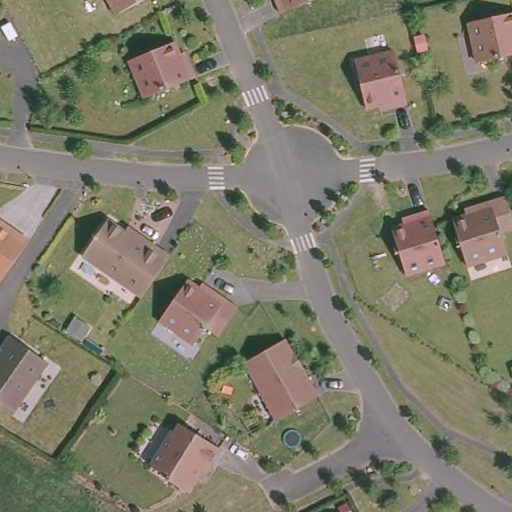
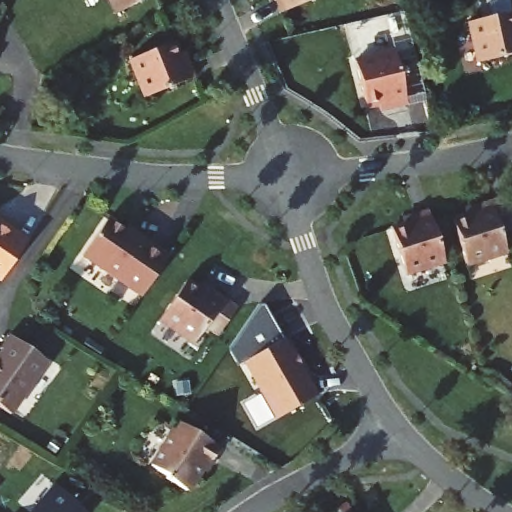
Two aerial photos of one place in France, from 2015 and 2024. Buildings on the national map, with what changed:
unchanged [(117,18),(107,0),(149,0),(117,18)]
unchanged [(277,11),(273,0),(303,0),(277,11)]
unchanged [(512,11),(512,54),(477,63),(466,24),(512,11)]
unchanged [(169,49),(174,71),(181,70),(186,87),(133,100),(123,61),(169,49)]
unchanged [(353,62),(392,52),(406,106),(388,110),(387,103),(364,109),(353,62)]
unchanged [(474,212),(472,206),(503,196),(512,224),(512,229),(499,233),(506,252),(466,265),(451,220),(474,212)]
unchanged [(411,220),(409,214),(426,209),(443,261),(404,273),(389,227),(411,220)]
unchanged [(105,220),(132,238),(135,234),(167,256),(148,284),(142,292),(83,252),(105,220)]
unchanged [(9,229),(25,241),(6,268),(0,277),(0,229),(6,234),(9,229)]
unchanged [(184,285),(205,299),(208,293),(236,312),(216,341),(203,332),(193,348),(158,325),(184,285)]
unchanged [(0,402),(0,349),(3,345),(0,344),(10,331),(48,357),(12,410),(0,402)]
unchanged [(278,422),(261,395),(262,393),(246,365),(285,342),(298,365),(294,367),(296,371),(301,368),(319,399),(278,422)]
unchanged [(201,477),(194,472),(191,479),(192,480),(183,496),(162,483),(163,481),(147,472),(168,436),(174,440),(180,431),(216,452),(201,477)]
new [(85,512),(31,512),(54,486),(85,512)]

